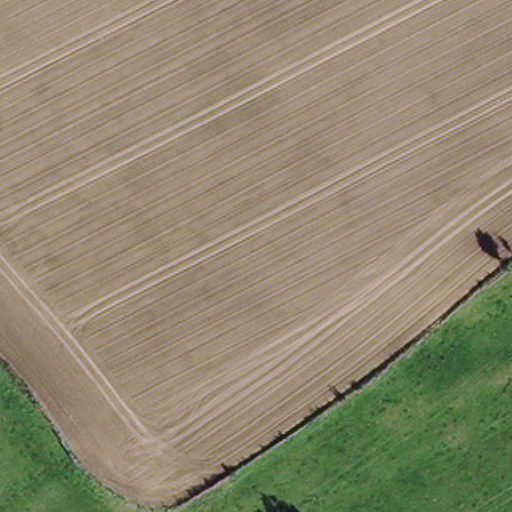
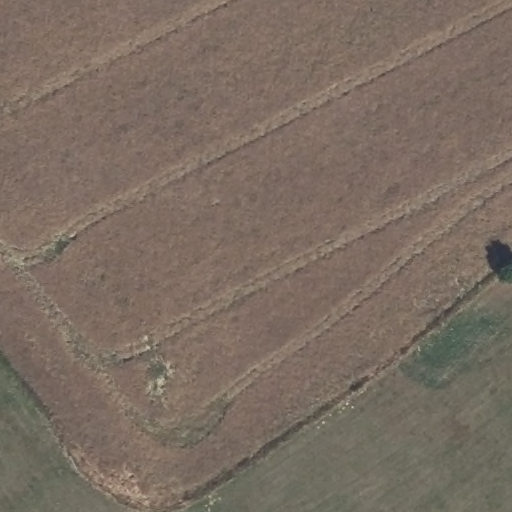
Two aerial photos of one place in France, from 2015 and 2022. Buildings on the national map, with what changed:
[]

